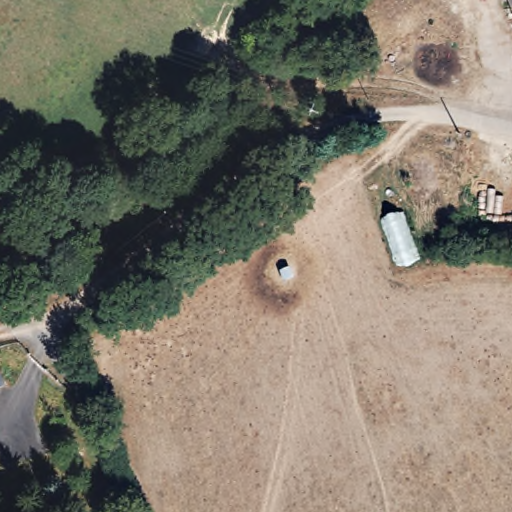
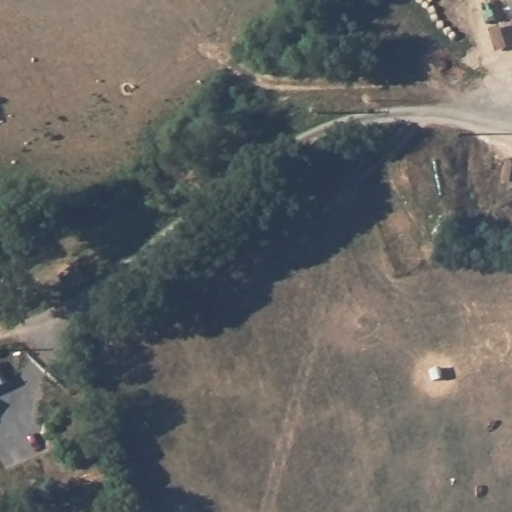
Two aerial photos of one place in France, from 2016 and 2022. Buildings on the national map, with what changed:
unchanged [(512,0),(512,26),(501,0),(512,0)]

